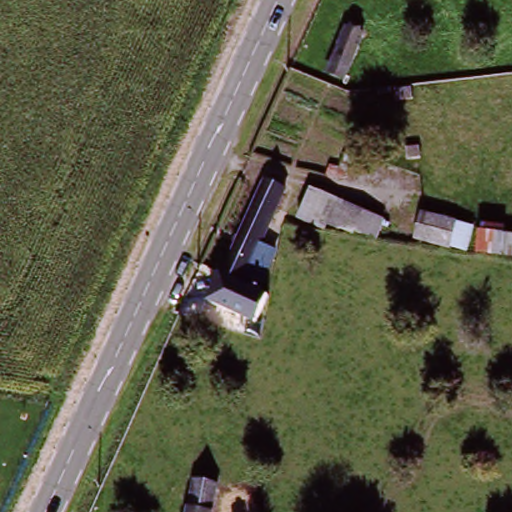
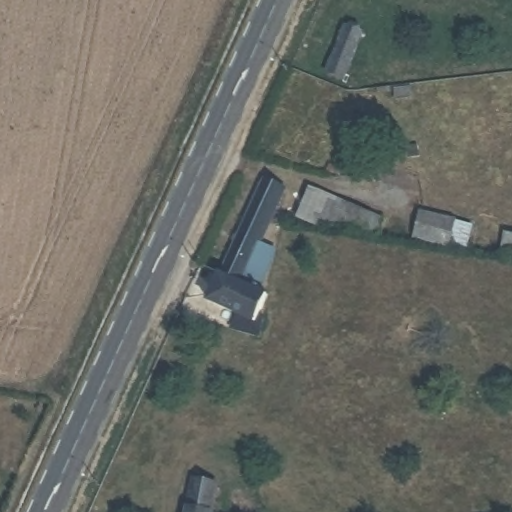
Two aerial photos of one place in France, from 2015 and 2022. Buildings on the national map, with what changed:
unchanged [(354,69),(348,81),(340,77),(339,81),(320,73),(340,28),(357,35),(345,64),(354,69)]
unchanged [(258,172),(280,182),(255,237),(269,244),(249,282),(263,289),(247,316),(202,293),(216,266),(258,172)]
unchanged [(327,229),(322,238),(297,224),(312,194),(364,218),(383,228),(375,245),(371,251),(351,241),(327,229)]
unchanged [(505,231),(512,233),(512,260),(472,254),(408,242),(416,207),(507,221),(505,231)]
unchanged [(207,512),(181,512),(187,481),(212,486),(210,496),(207,512)]

